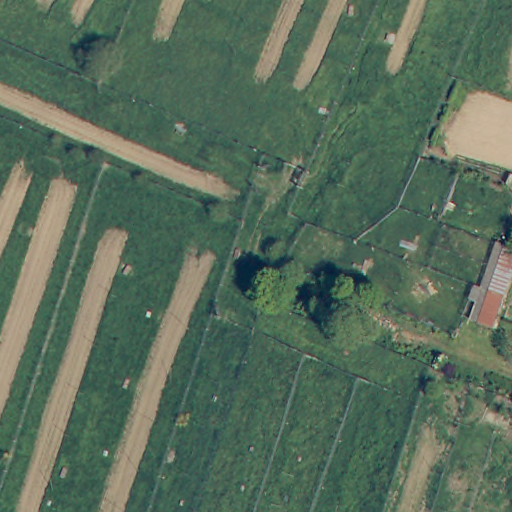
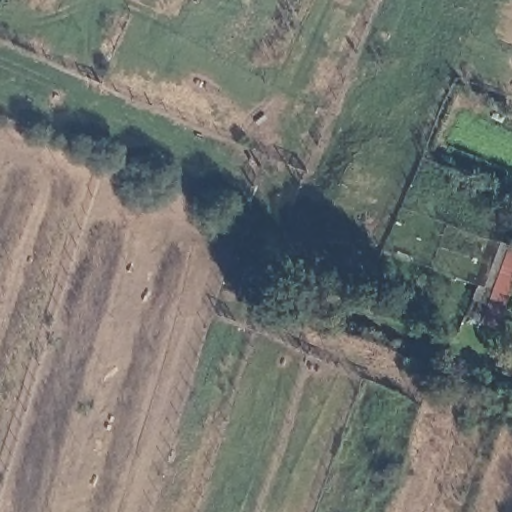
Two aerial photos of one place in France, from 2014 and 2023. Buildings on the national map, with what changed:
unchanged [(512,264),(486,332),(465,326),(495,241),(512,245),(512,264)]

